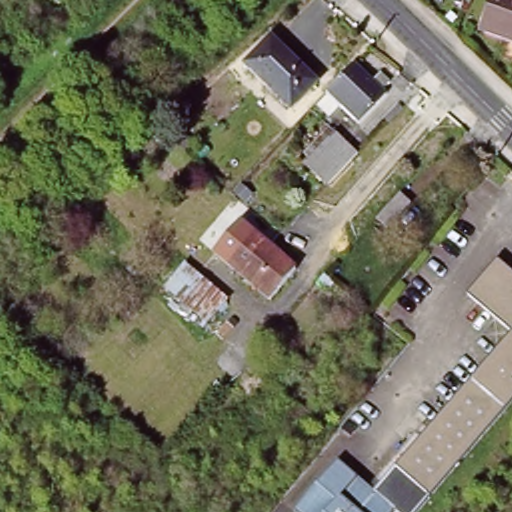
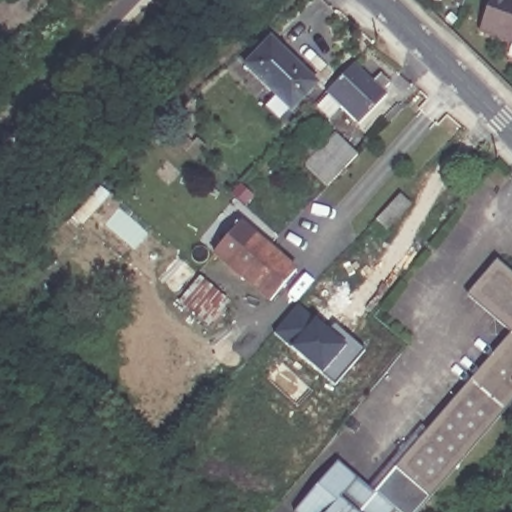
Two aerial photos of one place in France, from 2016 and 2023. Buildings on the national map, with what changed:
unchanged [(479,30),(491,0),(512,0),(512,44),(479,30)]
unchanged [(315,84),(289,111),(242,67),(269,40),(315,84)]
unchanged [(384,100),(357,128),(323,97),(351,68),(384,100)]
unchanged [(355,155),(325,186),(304,163),(334,134),(355,155)]
unchanged [(410,207),(387,232),(378,222),(402,198),(410,207)]
unchanged [(297,272),(272,301),(232,267),(256,239),(297,272)]
unchanged [(160,262),(177,274),(189,266),(232,304),(222,314),(236,326),(223,342),(147,277),(160,262)]
unchanged [(422,428),(428,434),(509,339),(468,300),(497,267),(512,281),(512,406),(421,512),(392,512),(367,492),(422,428)]
new [(337,341),(343,333),(367,353),(336,389),(274,338),(298,308),(337,341)]
unchanged [(336,465),(367,492),(392,512),(296,512),(336,465)]

